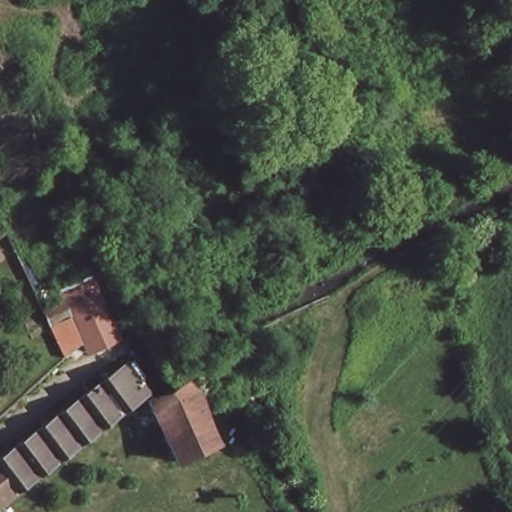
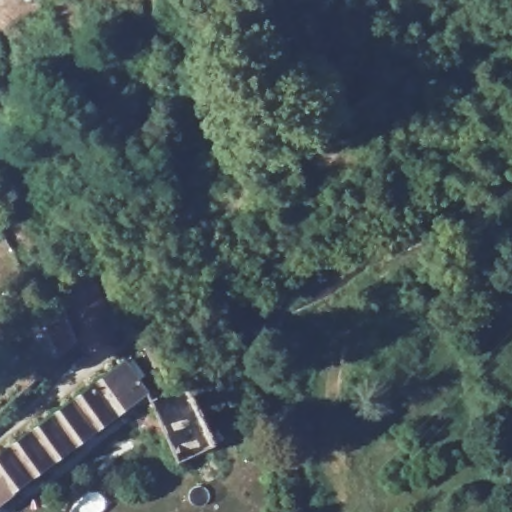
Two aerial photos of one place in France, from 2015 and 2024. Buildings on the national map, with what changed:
unchanged [(96,285),(122,344),(93,359),(87,346),(67,298),(96,285)]
unchanged [(62,305),(63,305),(53,310),(50,304),(46,298),(60,290),(64,299),(60,300),(62,305)]
unchanged [(243,364),(228,371),(219,356),(236,348),(243,364)]
unchanged [(0,503),(0,459),(130,363),(149,391),(54,463),(37,475),(0,503)]
unchanged [(190,373),(222,444),(183,461),(151,389),(170,378),(188,371),(190,373)]
unchanged [(249,446),(254,455),(244,461),(239,452),(249,446)]

